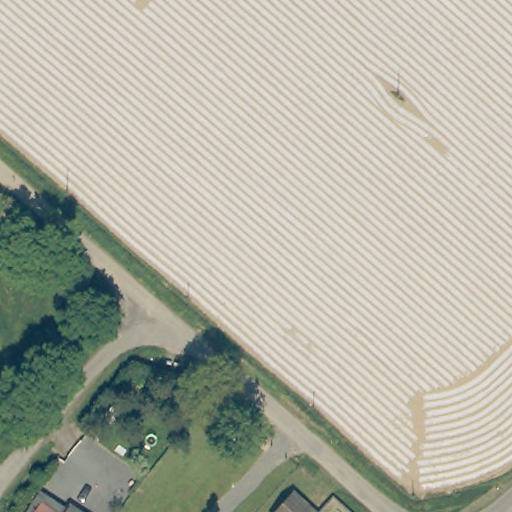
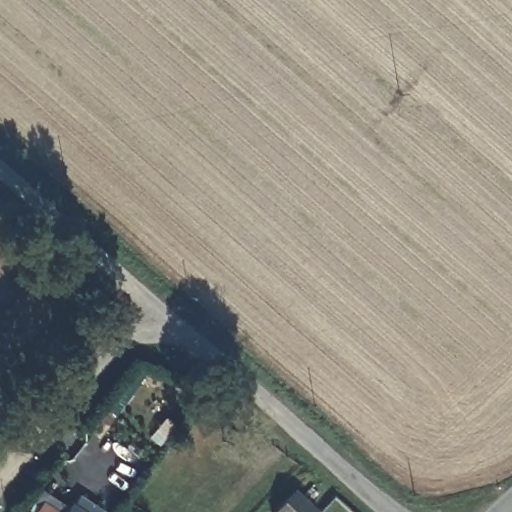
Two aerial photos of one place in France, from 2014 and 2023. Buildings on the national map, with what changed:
unchanged [(314,512),(277,512),(294,493),(314,512)]
unchanged [(69,512),(73,506),(80,512),(69,512)]

